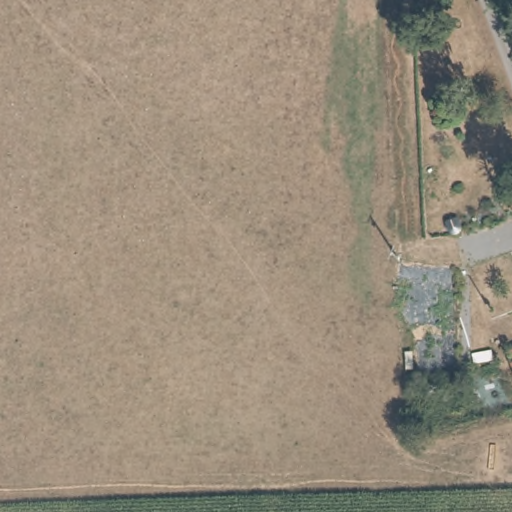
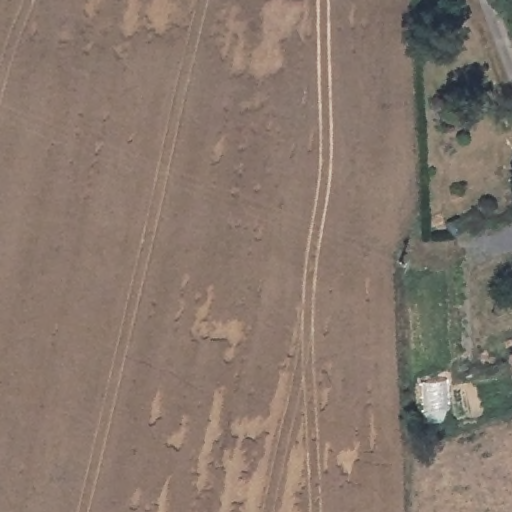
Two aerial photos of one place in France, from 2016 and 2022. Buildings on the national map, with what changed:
unchanged [(460,213),(459,228),(450,227),(450,213),(460,213)]
unchanged [(512,357),(512,376),(505,360),(512,357)]

